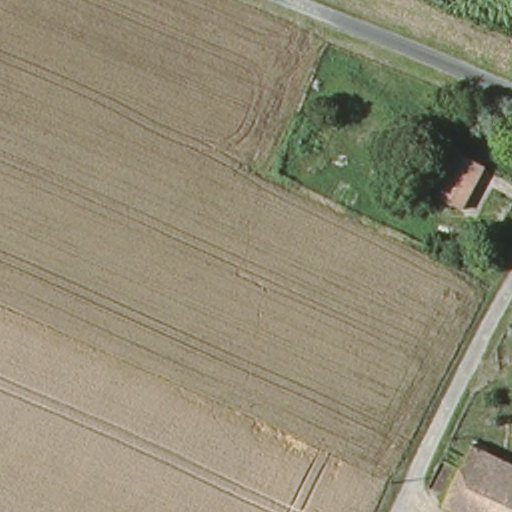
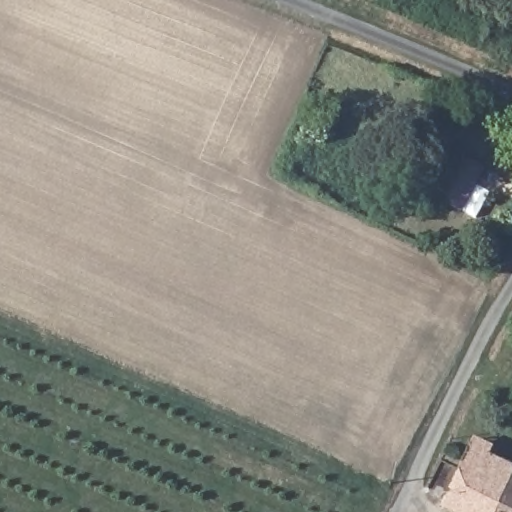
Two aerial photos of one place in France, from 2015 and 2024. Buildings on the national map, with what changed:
unchanged [(457,153),(483,168),(457,214),(432,199),(457,153)]
unchanged [(448,507),(474,449),(512,467),(512,480),(497,512),(458,512),(448,507)]
unchanged [(512,480),(512,512),(497,512),(512,480)]

